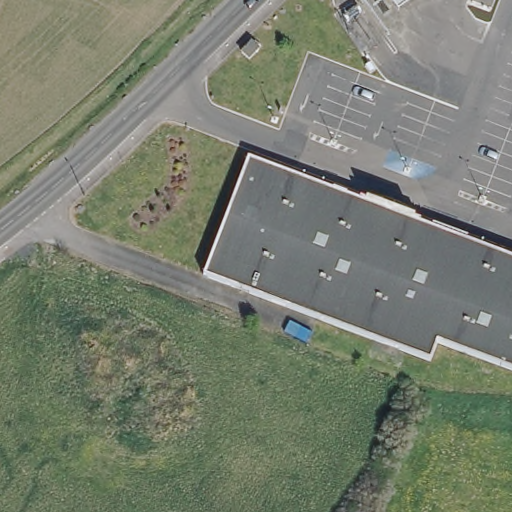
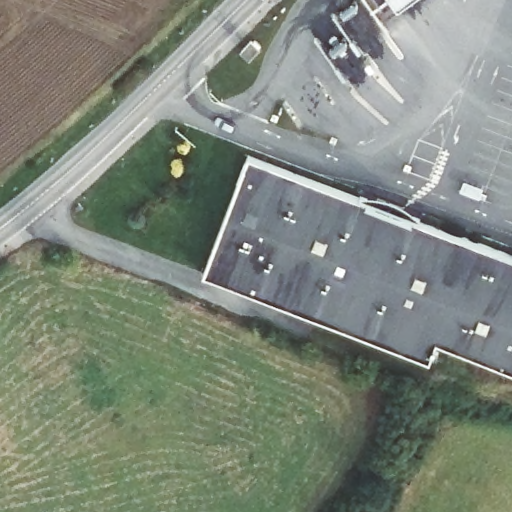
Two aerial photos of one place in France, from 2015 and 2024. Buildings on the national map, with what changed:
unchanged [(380,17),(368,0),(403,0),(399,3),(380,17)]
unchanged [(259,48),(245,60),(233,56),(252,39),(259,48)]
unchanged [(253,155),(512,253),(512,369),(412,332),(403,352),(205,277),(253,155)]

